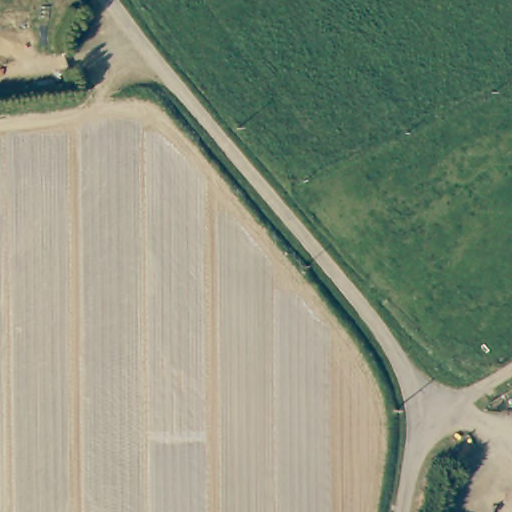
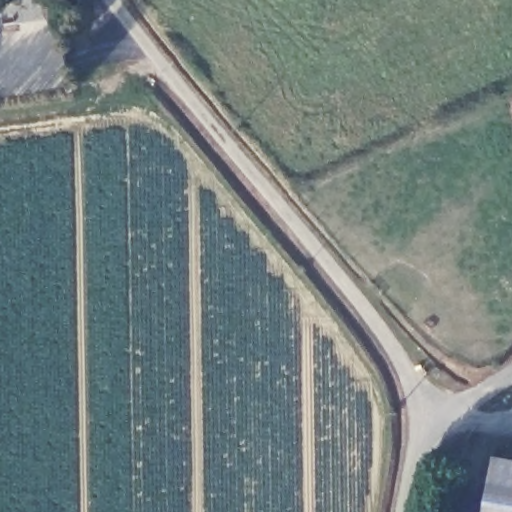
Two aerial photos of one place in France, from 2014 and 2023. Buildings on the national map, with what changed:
new [(512,459),(512,512),(484,512),(493,456),(512,459)]

